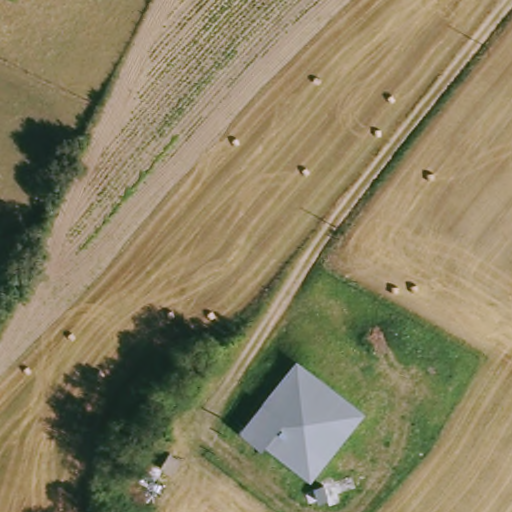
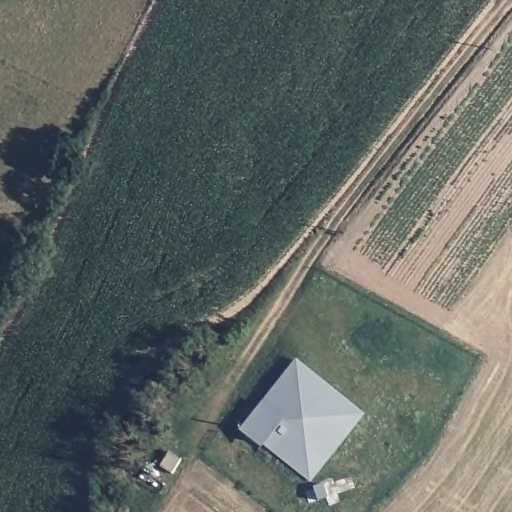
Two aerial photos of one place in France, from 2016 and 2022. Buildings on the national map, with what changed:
unchanged [(355,482),(342,485),(344,491),(331,495),(330,490),(319,492),(316,482),(327,478),(325,473),(337,469),(339,474),(352,470),(355,482)]

